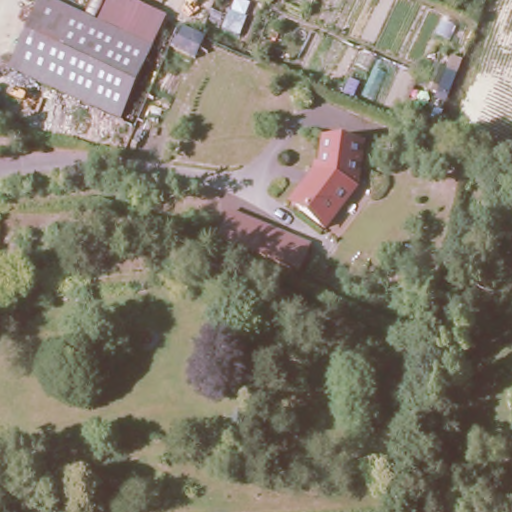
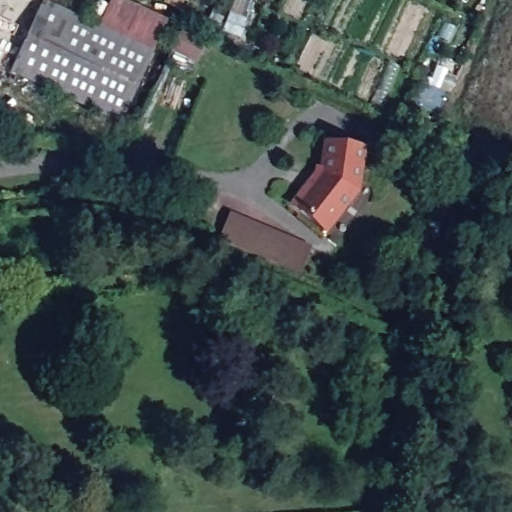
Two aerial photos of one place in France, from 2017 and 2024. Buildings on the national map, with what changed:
unchanged [(121,121),(14,66),(46,0),(54,0),(92,21),(100,0),(109,2),(110,0),(135,0),(172,19),(121,121)]
unchanged [(308,173),(313,178),(327,161),(333,133),(366,139),(358,183),(327,221),(293,194),(308,173)]
unchanged [(300,274),(219,240),(231,210),(312,244),(300,274)]

